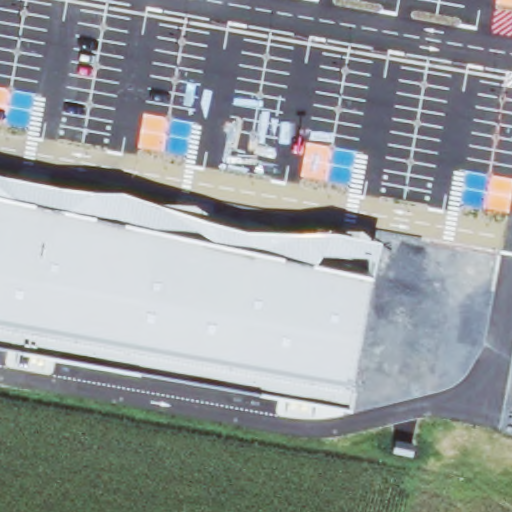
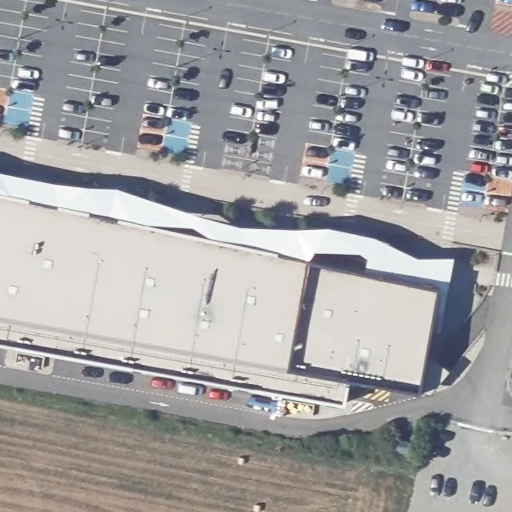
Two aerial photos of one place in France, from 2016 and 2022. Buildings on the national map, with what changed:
unchanged [(345,400),(0,335),(0,206),(366,277),(345,400)]
new [(434,290),(425,354),(433,356),(450,369),(430,393),(420,391),(419,393),(348,381),(366,277),(434,290)]

